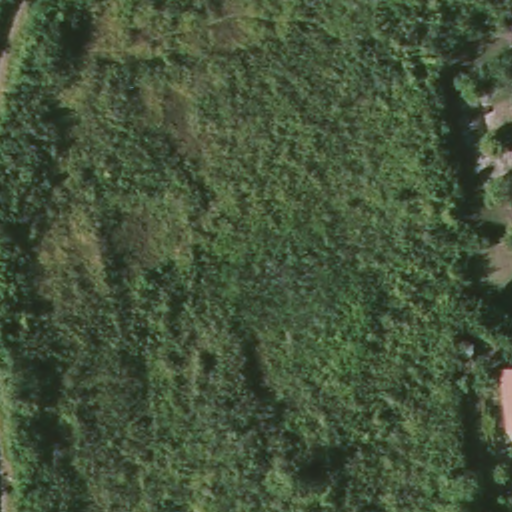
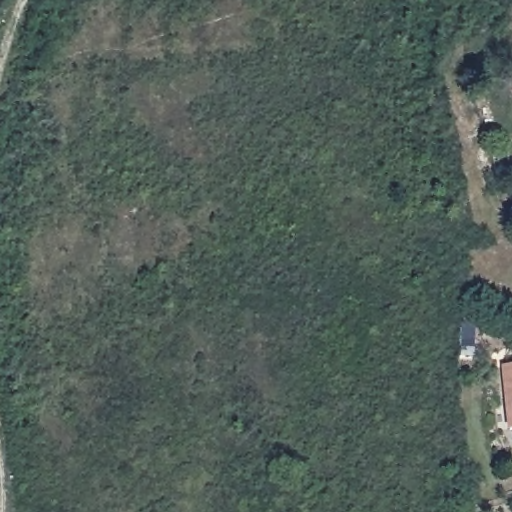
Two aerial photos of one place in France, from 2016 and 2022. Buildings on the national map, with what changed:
unchanged [(510,368),(512,368),(512,388),(510,368)]

